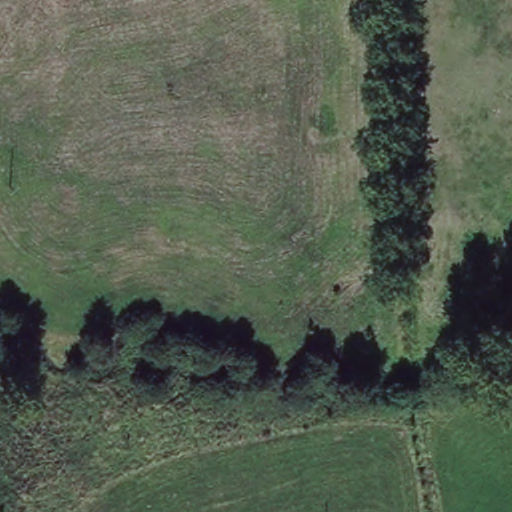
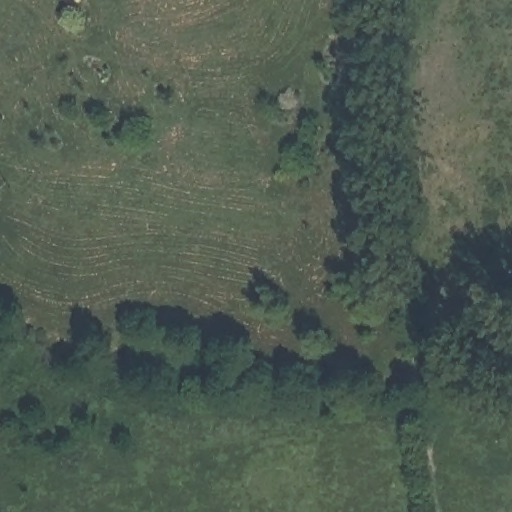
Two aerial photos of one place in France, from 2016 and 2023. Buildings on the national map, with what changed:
[]

